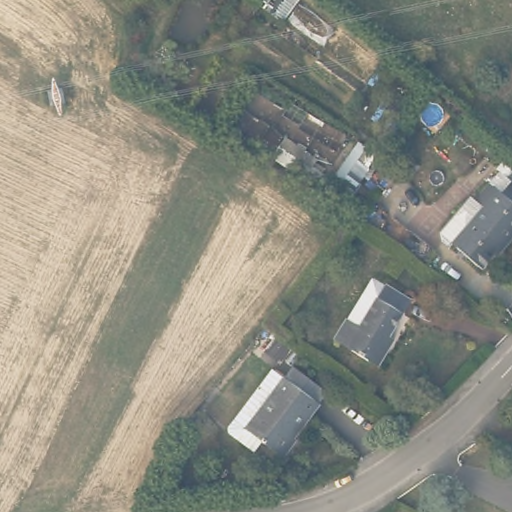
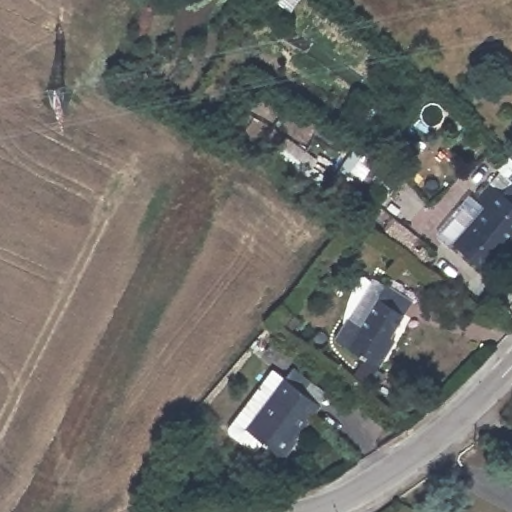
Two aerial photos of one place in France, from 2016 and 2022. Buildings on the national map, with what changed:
unchanged [(512,243),(511,244),(508,242),(487,267),(459,245),(489,208),(480,200),(493,184),(506,194),(512,186),(512,243)]
unchanged [(409,304),(386,342),(391,345),(376,370),(333,343),(345,325),(357,332),(383,289),(409,304)]
unchanged [(292,373),(326,396),(318,407),(319,408),(297,442),(300,444),(287,463),(265,449),(258,461),(231,443),(230,438),(249,409),(271,376),(282,384),(284,385),(292,373)]

